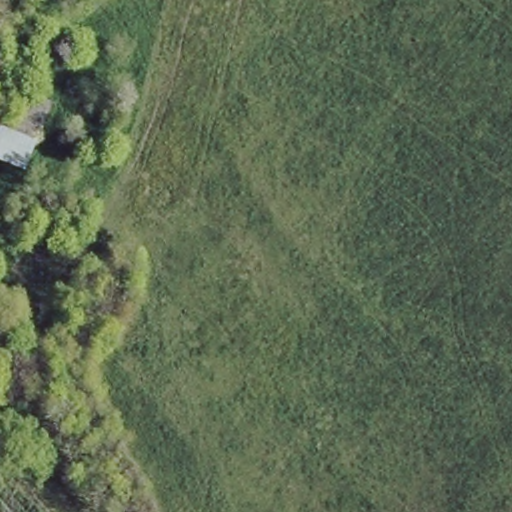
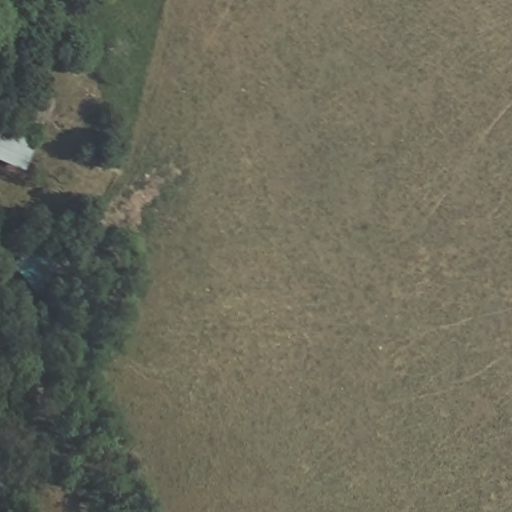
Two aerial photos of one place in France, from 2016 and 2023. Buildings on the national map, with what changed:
unchanged [(25,90),(53,103),(37,148),(7,134),(25,90)]

